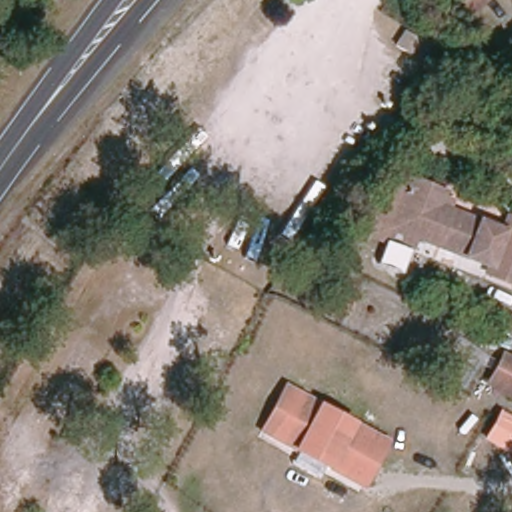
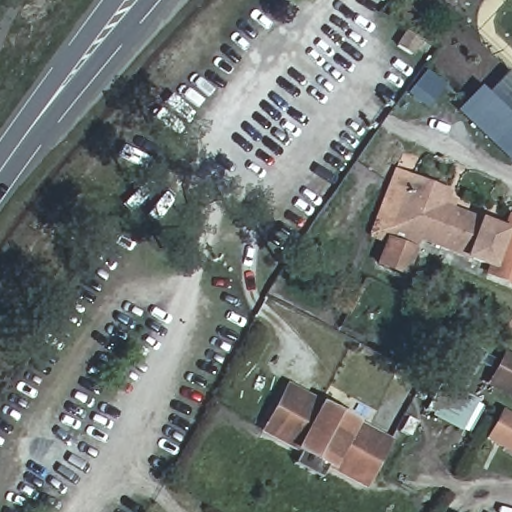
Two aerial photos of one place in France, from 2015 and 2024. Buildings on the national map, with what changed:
demolished [(485,10),(476,0),(496,0),(485,10)]
new [(424,110),(404,93),(424,69),(444,86),(424,110)]
new [(512,73),(512,164),(454,110),(479,85),(485,91),(507,69),(512,73)]
unchanged [(450,191),(448,196),(458,200),(454,210),(507,230),(512,217),(512,282),(493,275),(496,267),(422,239),(404,276),(369,261),(401,172),(450,191)]
unchanged [(512,356),(512,399),(486,384),(508,353),(512,356)]
unchanged [(365,490),(330,471),(321,466),(317,476),(291,461),(296,452),(291,450),(259,432),(285,382),(317,401),(356,421),(391,440),(365,490)]
unchanged [(483,440),(500,410),(512,416),(512,455),(483,440)]

